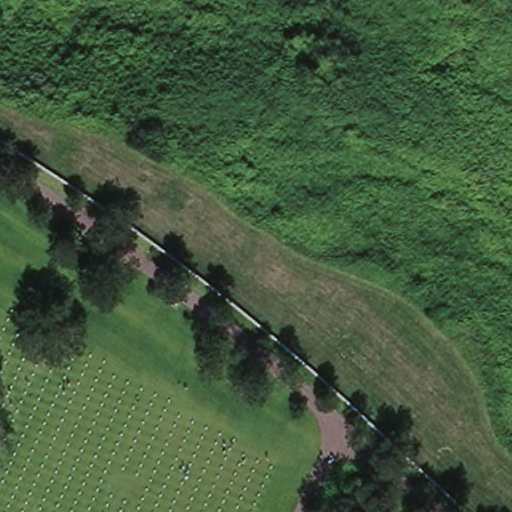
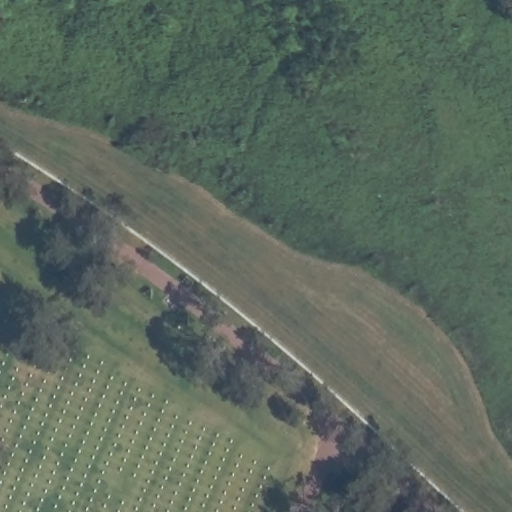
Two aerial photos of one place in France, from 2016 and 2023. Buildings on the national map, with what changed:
[]

